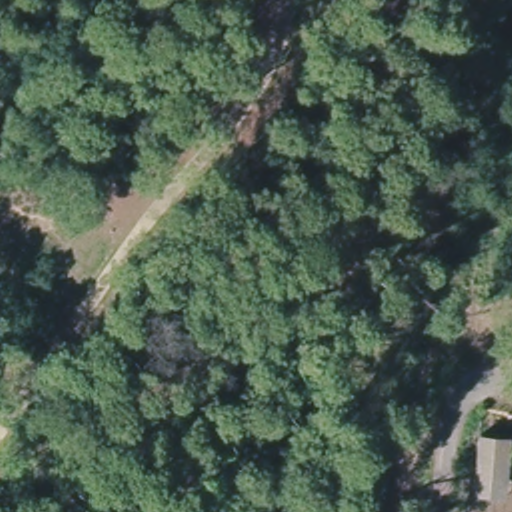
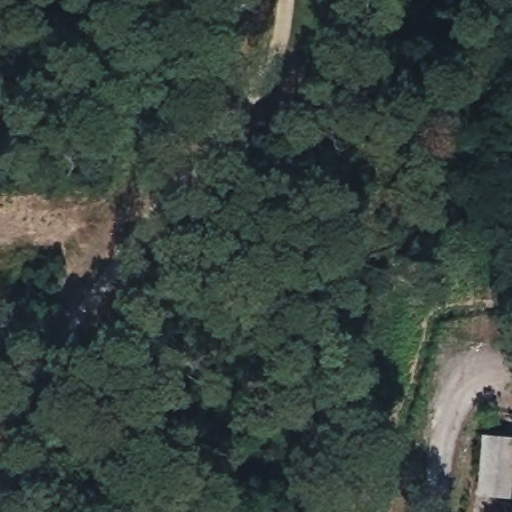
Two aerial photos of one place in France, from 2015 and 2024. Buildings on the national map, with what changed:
unchanged [(512,438),(512,484),(510,498),(476,497),(480,435),(512,438)]

